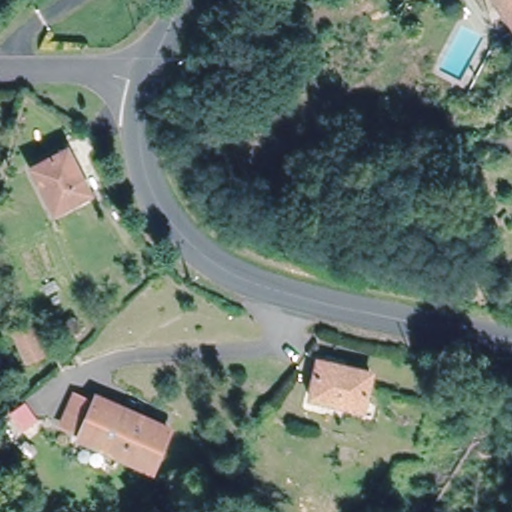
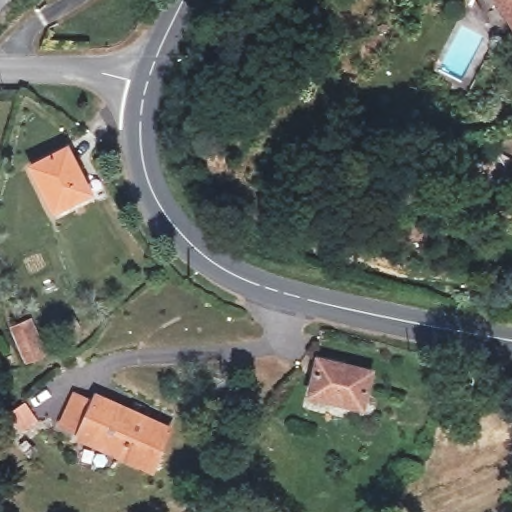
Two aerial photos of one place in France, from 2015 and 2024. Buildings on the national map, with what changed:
unchanged [(502,9),(488,18),(483,0),(512,0),(512,25),(502,9)]
unchanged [(91,194),(54,212),(31,167),(67,149),(91,194)]
unchanged [(363,409),(310,396),(318,360),(371,372),(363,409)]
unchanged [(169,425),(151,464),(79,431),(81,428),(61,419),(75,390),(94,399),(96,392),(169,425)]

